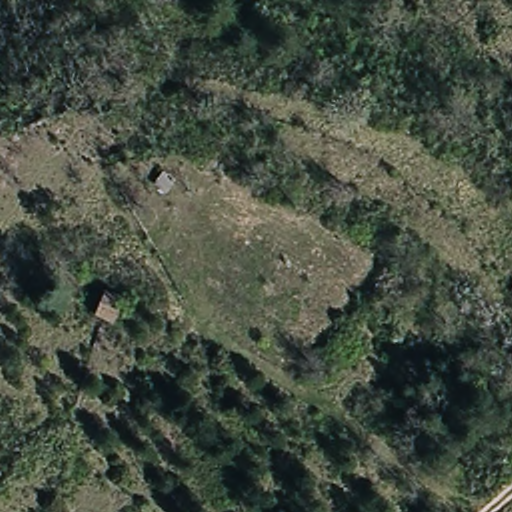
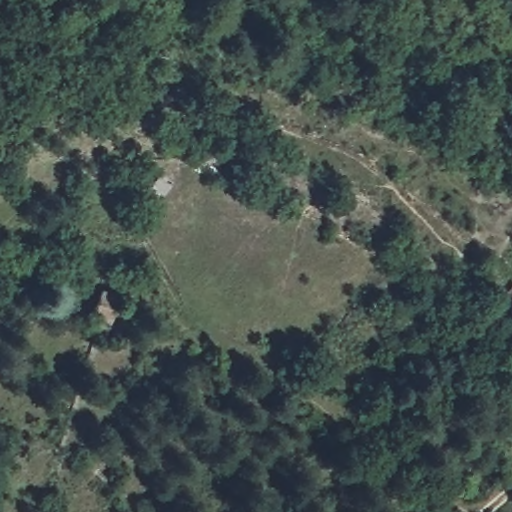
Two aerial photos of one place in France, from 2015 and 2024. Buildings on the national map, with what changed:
unchanged [(96,286),(131,297),(117,327),(104,323),(85,315),(96,286)]

